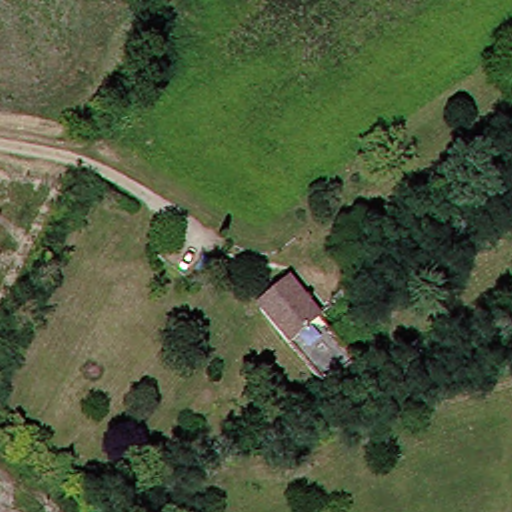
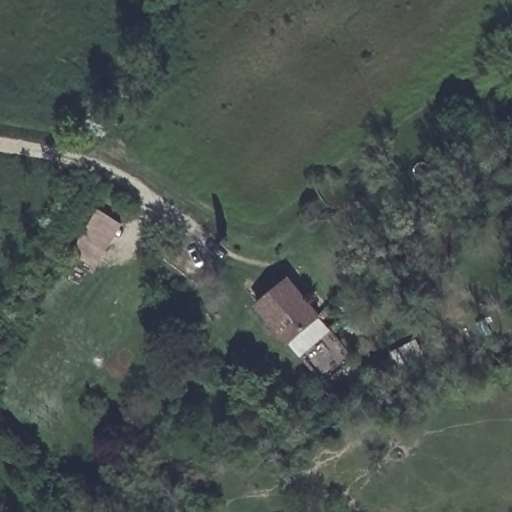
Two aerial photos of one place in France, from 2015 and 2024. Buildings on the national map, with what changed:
new [(97,207),(122,222),(96,266),(71,251),(97,207)]
unchanged [(314,313),(283,341),(249,301),(280,273),(314,313)]

